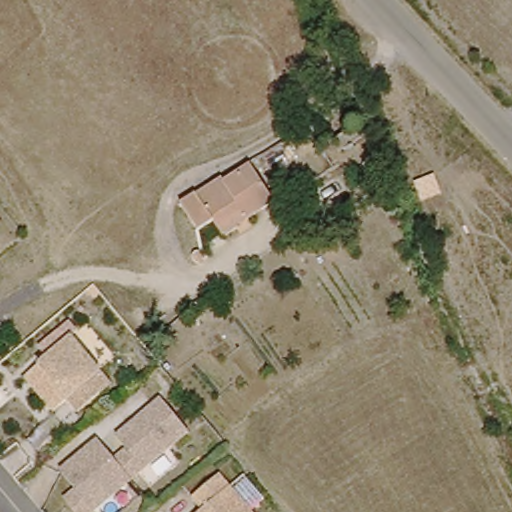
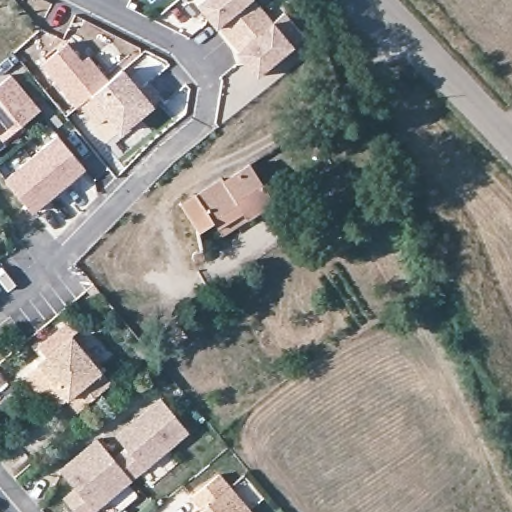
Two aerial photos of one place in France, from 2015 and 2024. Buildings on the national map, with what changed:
new [(294,42),(258,74),(238,51),(242,48),(231,34),(221,21),(217,25),(198,2),(200,0),(257,0),(274,19),(284,9),(305,33),(294,42)]
new [(83,60),(88,56),(105,77),(80,98),(84,102),(76,108),(40,66),(67,43),(83,60)]
new [(121,64),(138,84),(147,76),(161,91),(120,126),(108,111),(98,119),(80,98),(121,64)]
new [(39,108),(3,139),(0,135),(0,80),(9,73),(39,108)]
unchanged [(364,133),(371,145),(349,158),(342,146),(364,133)]
new [(33,213),(5,180),(58,135),(84,168),(33,213)]
unchanged [(273,204),(208,247),(194,230),(183,237),(168,209),(242,163),(273,204)]
unchanged [(33,368),(47,357),(78,331),(118,374),(85,401),(75,389),(62,401),(33,368)]
unchanged [(128,447),(118,435),(162,396),(191,429),(134,478),(116,457),(128,447)]
unchanged [(94,512),(79,512),(66,498),(78,488),(62,469),(99,437),(116,457),(134,478),(114,495),(98,509),(94,512)]
unchanged [(255,512),(203,512),(208,507),(199,495),(223,474),(255,512)]

